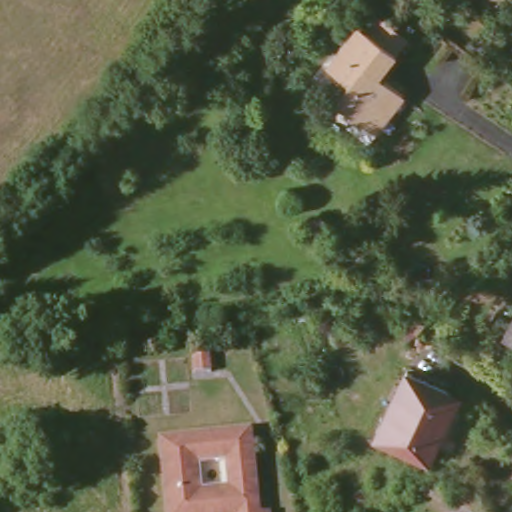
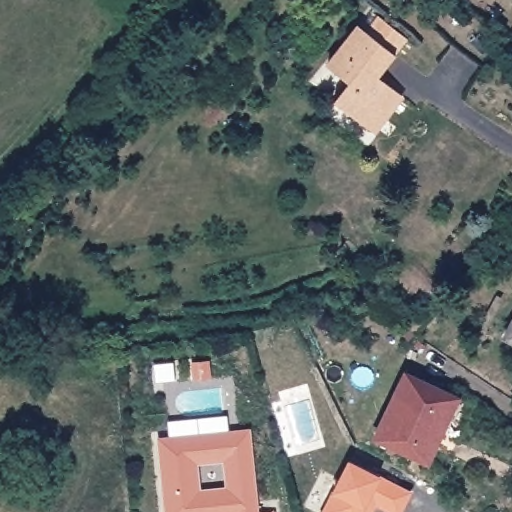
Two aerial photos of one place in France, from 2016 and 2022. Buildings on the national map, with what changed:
unchanged [(402,95),(374,131),(335,101),(349,81),(328,65),(359,24),(367,31),(377,18),(406,39),(397,52),(392,49),(374,73),(402,95)]
unchanged [(512,323),(512,339),(505,335),(512,323)]
unchanged [(426,461),(374,436),(405,371),(457,396),(434,446),(426,461)]
unchanged [(250,427),(257,512),(167,512),(160,435),(250,427)]
new [(348,458),(382,476),(412,490),(402,512),(386,512),(377,507),(374,512),(321,512),(332,491),(348,458)]
unchanged [(269,511),(269,512),(257,512),(264,511),(269,511)]

